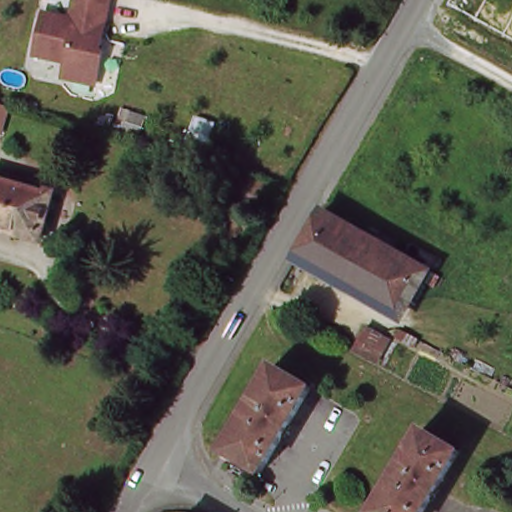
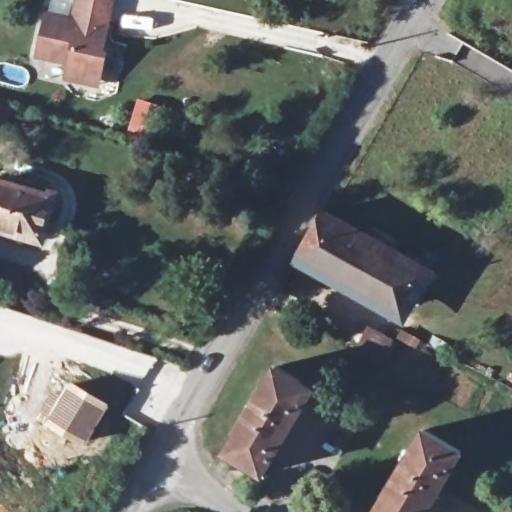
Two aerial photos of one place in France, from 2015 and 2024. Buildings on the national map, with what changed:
unchanged [(78,77),(66,75),(69,59),(38,52),(47,10),(74,17),(78,0),(113,0),(112,3),(101,49),(105,50),(100,72),(98,82),(78,77)]
unchanged [(9,110),(4,130),(0,129),(0,108),(9,110)]
unchanged [(43,240),(0,227),(0,180),(55,196),(43,240)]
unchanged [(429,282),(417,303),(409,299),(402,311),(301,254),(325,212),(328,213),(443,277),(438,286),(429,282)]
unchanged [(365,323),(381,332),(384,333),(369,358),(351,348),(365,323)]
unchanged [(274,365),(312,387),(263,470),(224,447),(274,365)]
new [(51,387),(60,392),(69,378),(111,403),(84,445),(35,417),(51,387)]
unchanged [(371,512),(369,511),(421,427),(457,449),(419,512),(371,512)]
unchanged [(324,511),(323,512),(302,512),(308,502),(324,511)]

